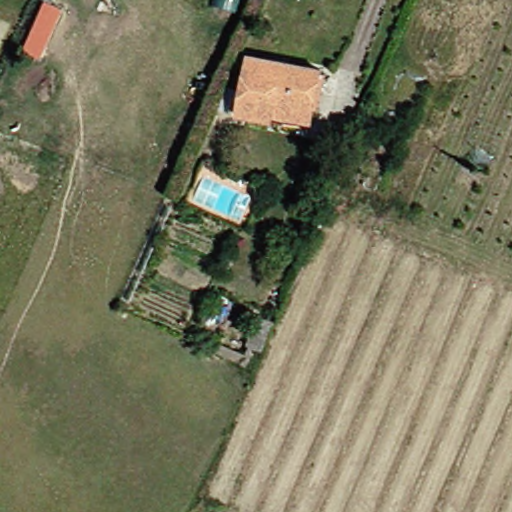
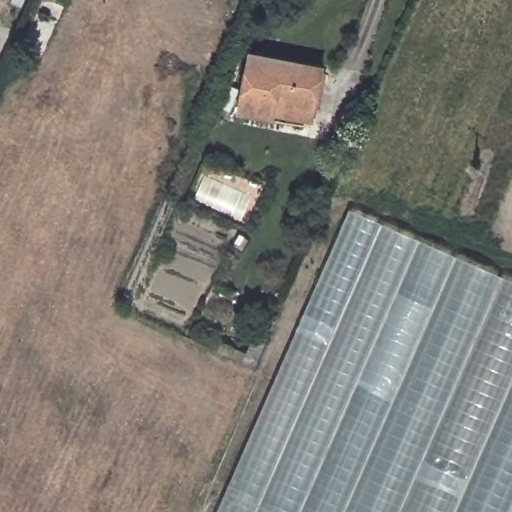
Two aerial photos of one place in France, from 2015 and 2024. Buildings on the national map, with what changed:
unchanged [(315,122),(309,121),(308,125),(242,116),(249,58),(322,68),(315,122)]
new [(512,512),(217,512),(348,210),(512,282),(512,512)]
unchanged [(263,357),(259,367),(245,360),(250,350),(263,357)]

